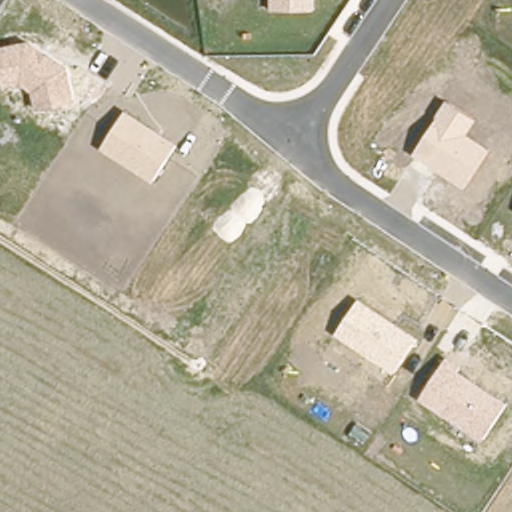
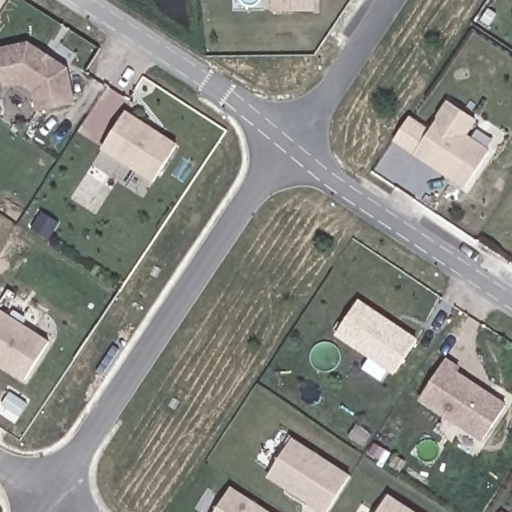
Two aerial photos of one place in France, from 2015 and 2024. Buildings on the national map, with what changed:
unchanged [(316,10),(271,11),(271,0),(316,0),(316,10)]
unchanged [(36,111),(32,93),(21,84),(4,88),(0,69),(0,47),(29,41),(68,66),(77,102),(36,111)]
unchanged [(490,150),(465,189),(413,155),(447,101),(477,120),(468,135),(490,150)]
unchanged [(152,182),(100,149),(126,111),(178,144),(152,182)]
unchanged [(394,374),(335,335),(358,299),(418,338),(394,374)]
new [(49,342),(25,379),(0,362),(0,309),(49,342)]
unchanged [(507,403),(482,442),(418,401),(446,357),(461,366),(458,371),(507,403)]
new [(294,437),(352,475),(328,511),(269,474),(294,437)]
new [(275,512),(214,512),(232,484),(275,512)]
new [(416,512),(378,512),(389,495),(416,512)]

